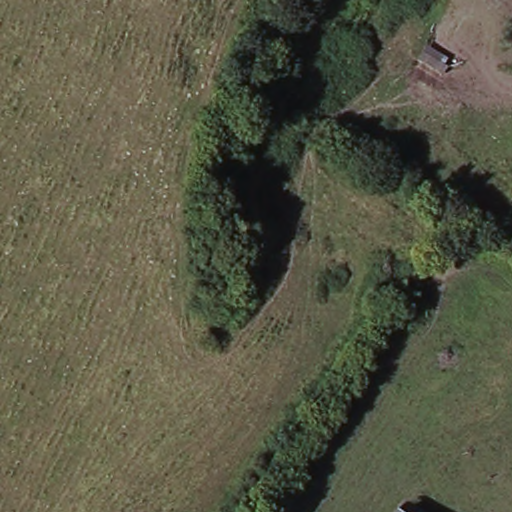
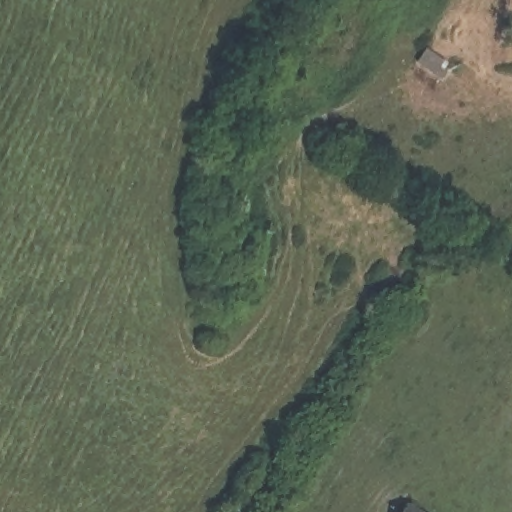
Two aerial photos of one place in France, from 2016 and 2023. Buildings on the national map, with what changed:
unchanged [(421,512),(404,512),(409,503),(421,512)]

